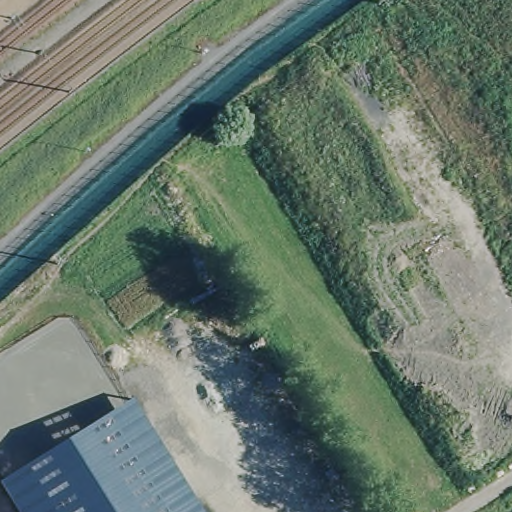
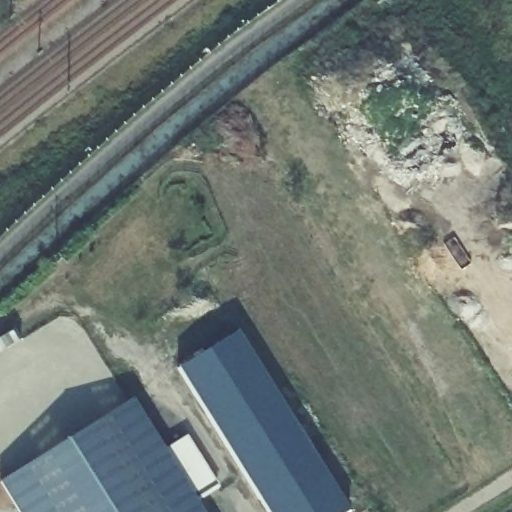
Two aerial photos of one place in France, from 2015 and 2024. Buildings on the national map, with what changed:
new [(238,332),(349,512),(266,512),(178,369),(238,332)]
unchanged [(133,398),(204,512),(18,512),(0,483),(133,398)]

